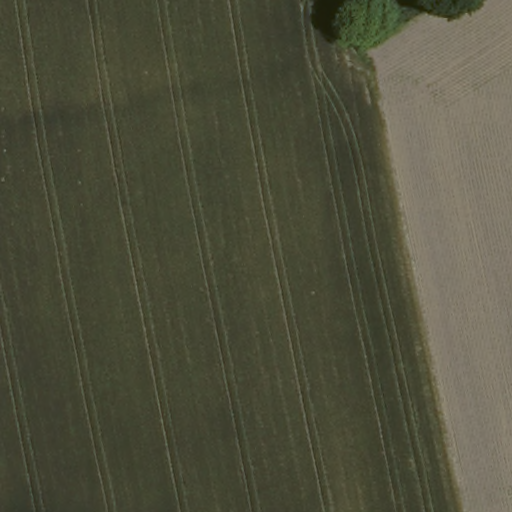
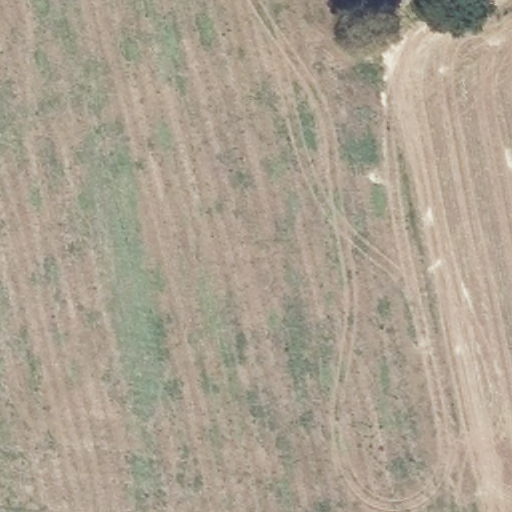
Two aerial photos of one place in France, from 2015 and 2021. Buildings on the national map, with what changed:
[]

